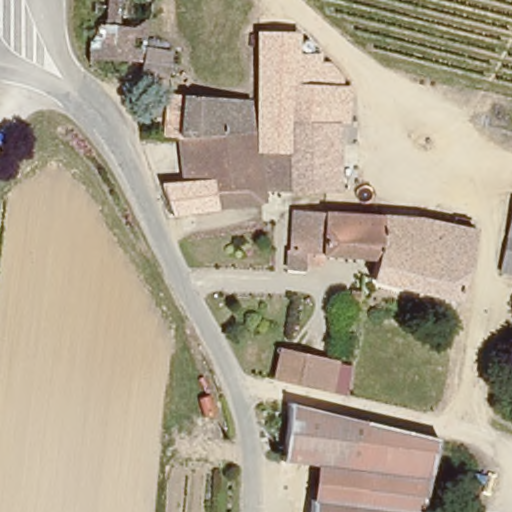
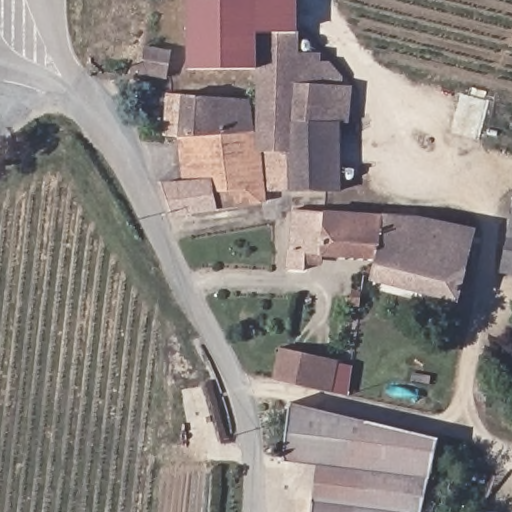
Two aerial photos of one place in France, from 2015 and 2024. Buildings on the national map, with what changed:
unchanged [(96,20),(95,20),(98,0),(120,0),(119,21),(96,20)]
new [(260,35),(260,70),(185,69),(185,0),(295,0),(297,35),(260,35)]
demolished [(144,62),(121,62),(120,62),(124,35),(146,37),(144,62)]
unchanged [(260,70),(260,35),(297,35),(297,56),(318,56),(318,66),(328,66),(340,82),(337,192),(325,192),(292,192),(293,151),(261,151),(260,131),(259,101),(260,70)]
unchanged [(218,135),(181,138),(168,139),(170,97),(182,98),(249,100),(251,132),(218,135)]
unchanged [(217,209),(176,216),(165,187),(187,184),(181,138),(218,135),(251,132),(260,131),(261,151),(293,151),(292,192),(261,192),(262,202),(217,209)]
unchanged [(306,261),(305,265),(290,264),(290,249),(294,249),(297,206),(382,212),(376,253),(322,249),(322,261),(306,261)]
unchanged [(376,253),(382,212),(417,214),(474,227),(457,295),(372,273),(376,253)]
unchanged [(510,237),(512,225),(512,273),(503,271),(510,237)]
unchanged [(360,306),(351,305),(352,292),(361,293),(360,306)]
unchanged [(335,364),(330,393),(277,381),(283,352),(335,364)]
unchanged [(318,468),(287,464),(292,405),(437,437),(437,433),(445,435),(425,512),(314,512),(318,468)]

